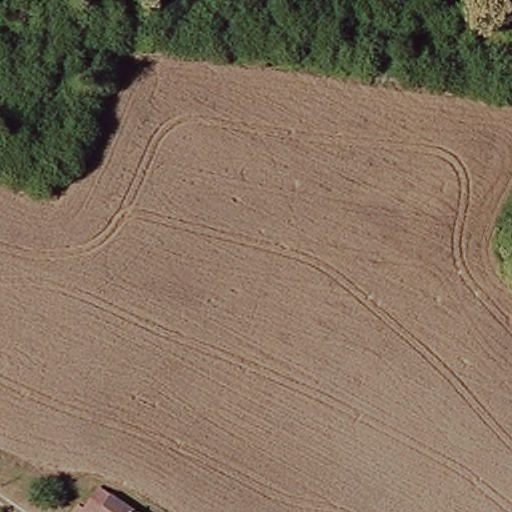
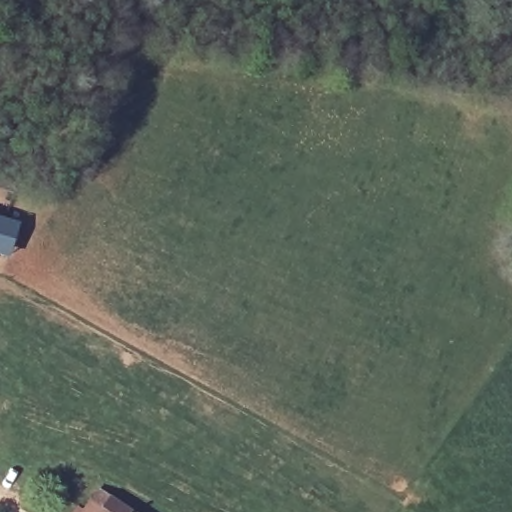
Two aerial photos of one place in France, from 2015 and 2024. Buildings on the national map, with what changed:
new [(20,223),(10,258),(0,255),(0,217),(20,223)]
unchanged [(123,512),(82,512),(95,492),(123,512)]
unchanged [(69,512),(68,512),(68,511),(69,512)]

